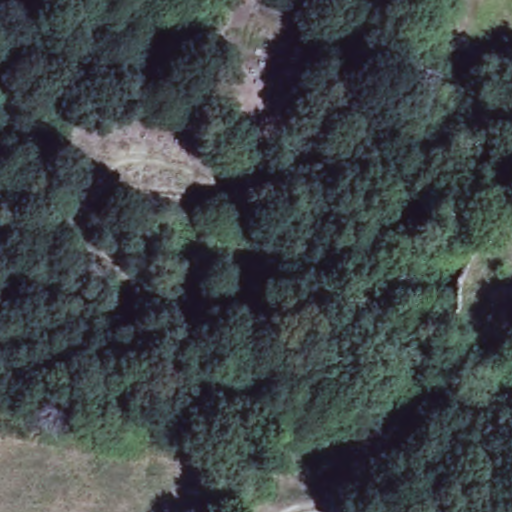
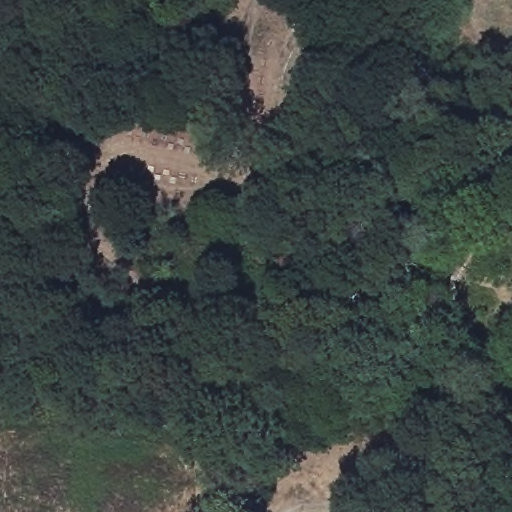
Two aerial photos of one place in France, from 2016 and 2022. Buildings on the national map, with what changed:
[]

